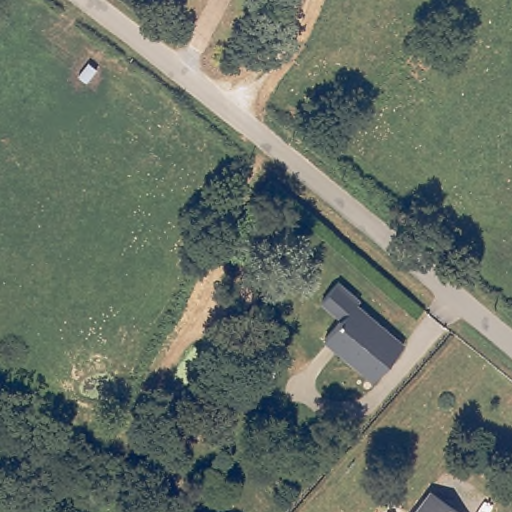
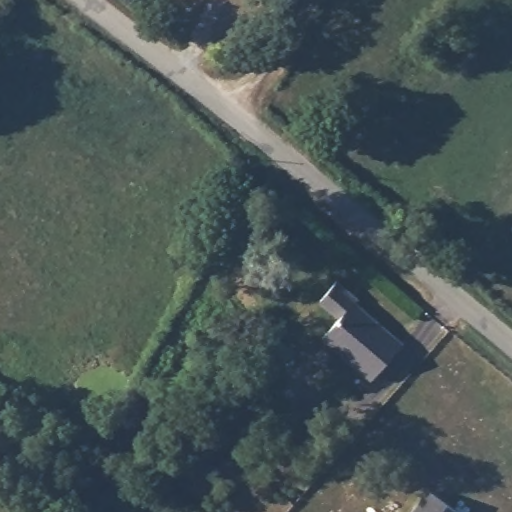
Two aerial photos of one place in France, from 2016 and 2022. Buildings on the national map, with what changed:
unchanged [(340,320),(342,317),(323,301),(341,280),(363,298),(359,303),(405,346),(373,384),(330,344),(324,339),(340,320)]
unchanged [(454,512),(413,512),(429,492),(454,512)]

